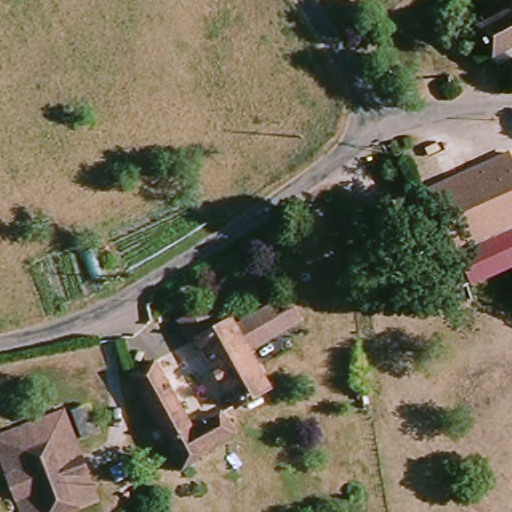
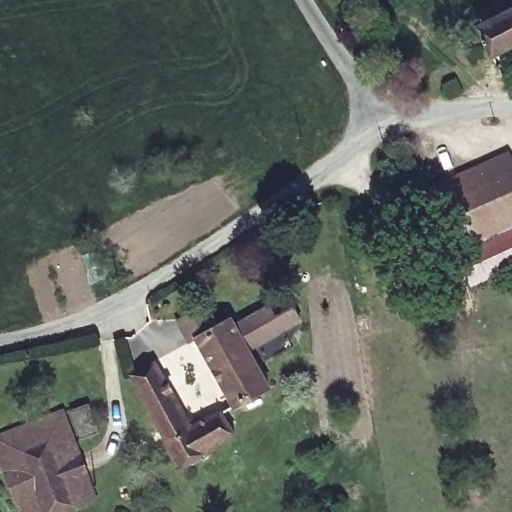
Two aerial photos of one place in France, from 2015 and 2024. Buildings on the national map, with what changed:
unchanged [(512,47),(491,56),(476,25),(512,8),(512,47)]
unchanged [(323,120),(328,129),(318,135),(313,126),(323,120)]
unchanged [(468,246),(454,251),(443,224),(459,219),(443,175),(509,149),(512,155),(512,278),(487,287),(468,246)]
unchanged [(269,301),(286,328),(242,354),(224,327),(269,301)]
unchanged [(193,338),(186,342),(173,319),(198,306),(209,327),(221,320),(224,327),(242,354),(263,391),(233,410),(193,338)]
unchanged [(154,367),(200,434),(226,417),(240,441),(185,474),(125,373),(141,363),(146,372),(154,367)]
unchanged [(88,404),(99,432),(81,439),(71,411),(88,404)]
unchanged [(63,413),(98,503),(71,512),(14,512),(0,475),(0,436),(63,413)]
unchanged [(163,507),(165,512),(146,512),(163,507)]

